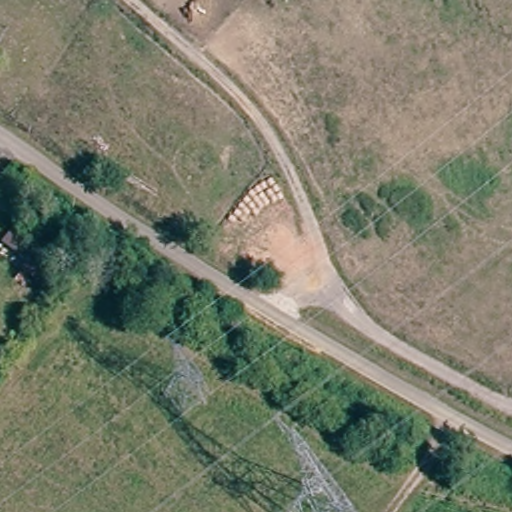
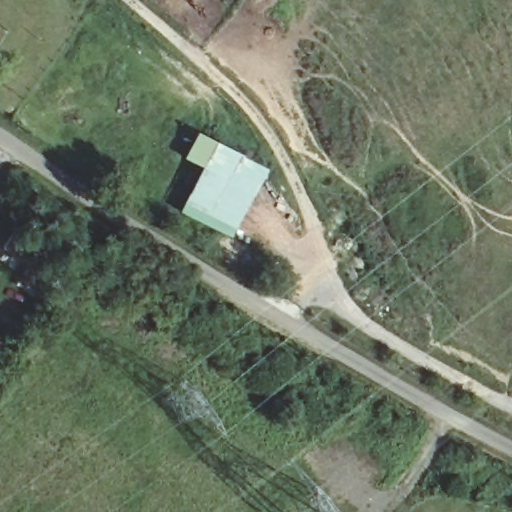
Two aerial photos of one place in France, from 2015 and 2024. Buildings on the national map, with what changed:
new [(179,212),(202,168),(183,159),(196,134),(264,169),(228,236),(179,212)]
unchanged [(33,297),(16,283),(31,262),(3,240),(0,238),(0,229),(13,222),(19,227),(62,260),(33,297)]

